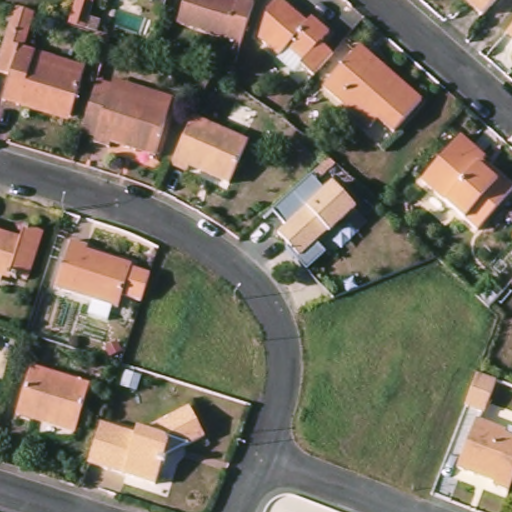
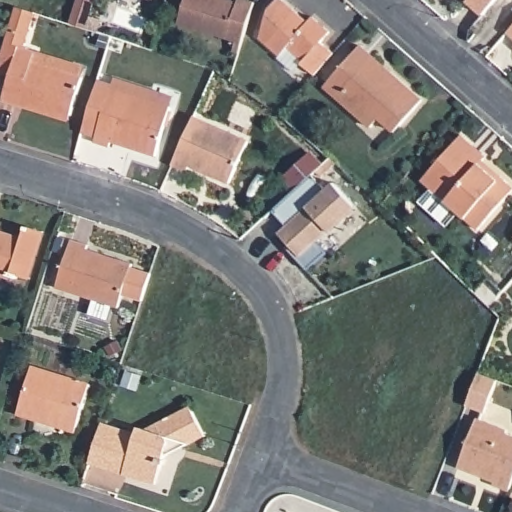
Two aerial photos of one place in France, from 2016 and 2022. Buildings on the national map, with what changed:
unchanged [(71,24),(79,0),(95,0),(86,29),(71,24)]
unchanged [(189,0),(225,0),(239,4),(240,0),(242,0),(256,4),(244,45),(181,24),(189,0)]
unchanged [(282,56),(270,45),(262,39),(272,9),(280,0),(285,0),(311,23),(315,18),(332,34),(322,44),(335,54),(315,76),(303,67),(297,75),(279,59),(282,56)]
unchanged [(471,0),(498,0),(486,13),(471,0)]
unchanged [(87,80),(75,119),(25,103),(24,107),(9,103),(15,84),(0,79),(0,73),(17,13),(38,19),(28,51),(41,54),(89,70),(87,80)]
unchanged [(512,32),(512,36),(510,34),(512,32)]
unchanged [(362,47),(376,60),(373,64),(387,77),(391,73),(423,101),(396,132),(381,119),(372,129),(326,88),(362,47)]
unchanged [(109,143),(94,139),(97,129),(82,125),(96,80),(112,85),(114,75),(174,95),(171,104),(155,152),(153,158),(109,143)]
unchanged [(250,141),(232,183),(191,166),(189,172),(174,165),(195,119),(250,141)]
unchanged [(423,182),(463,137),(487,159),(481,166),(499,182),(502,178),(512,187),(512,195),(480,232),(423,182)]
unchanged [(311,174),(326,190),(334,183),(356,205),(317,241),(327,252),(308,270),(287,248),(291,245),(280,234),(288,226),(273,211),(311,174)]
unchanged [(12,240),(11,244),(24,248),(29,232),(45,237),(32,283),(17,278),(16,283),(0,277),(0,236),(12,240)]
unchanged [(92,250),(90,255),(134,269),(132,272),(152,278),(143,304),(124,299),(120,311),(114,309),(110,323),(91,317),(96,304),(60,293),(75,245),(92,250)]
unchanged [(80,431),(37,417),(35,422),(20,417),(35,371),(94,389),(80,431)]
unchanged [(135,389),(121,385),(125,371),(140,375),(135,389)]
unchanged [(157,488),(92,468),(104,429),(137,439),(140,432),(147,434),(190,410),(206,439),(190,448),(166,461),(157,488)]
unchanged [(512,483),(510,489),(459,471),(477,419),(512,432),(512,483)]

